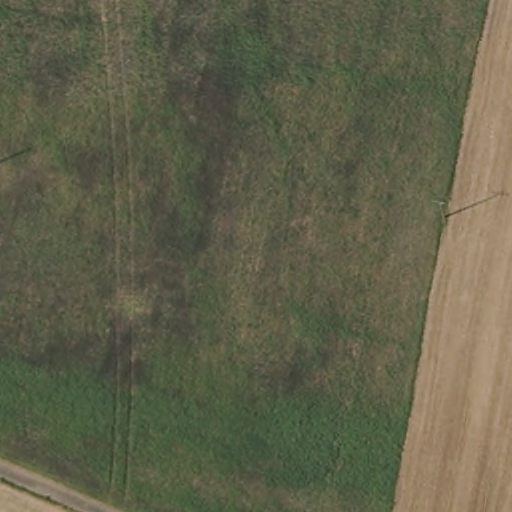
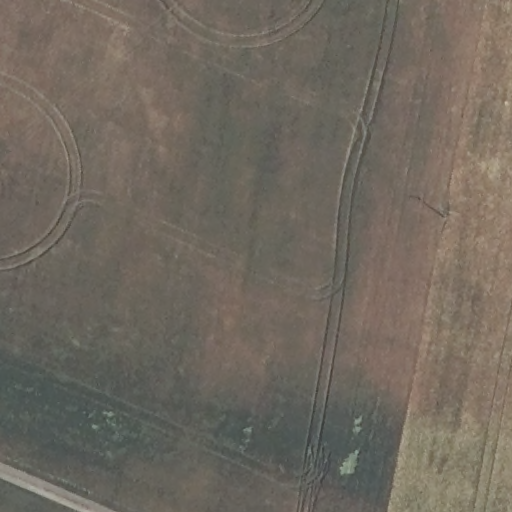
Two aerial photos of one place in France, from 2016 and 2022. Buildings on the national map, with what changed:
[]

